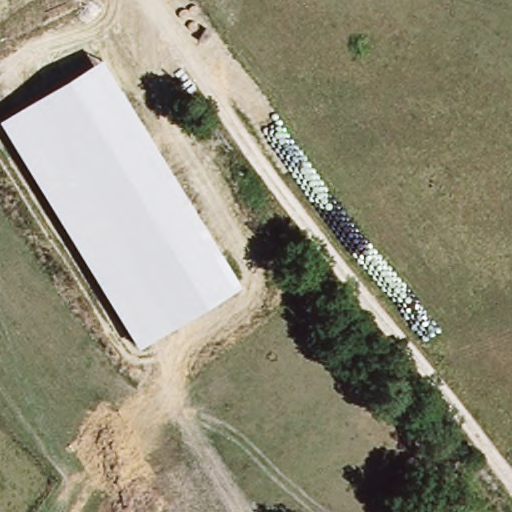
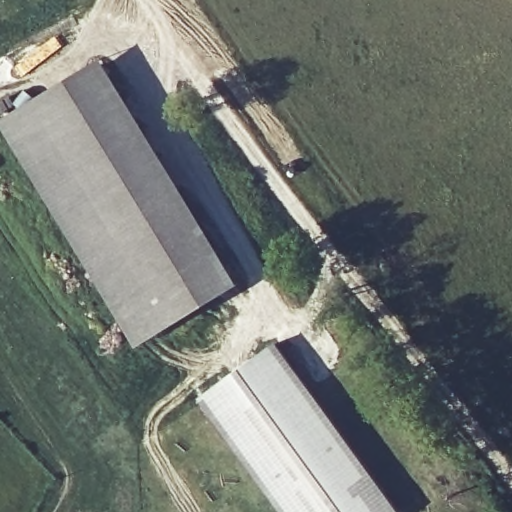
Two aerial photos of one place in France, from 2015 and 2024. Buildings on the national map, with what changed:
unchanged [(240,285),(140,346),(1,121),(102,58),(240,285)]
new [(283,512),(199,397),(277,341),(402,512),(283,512)]

